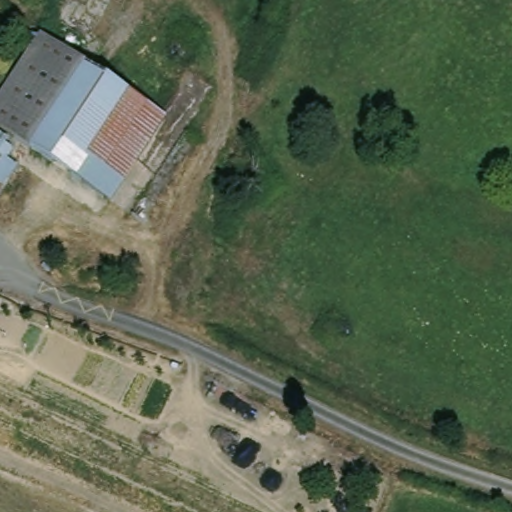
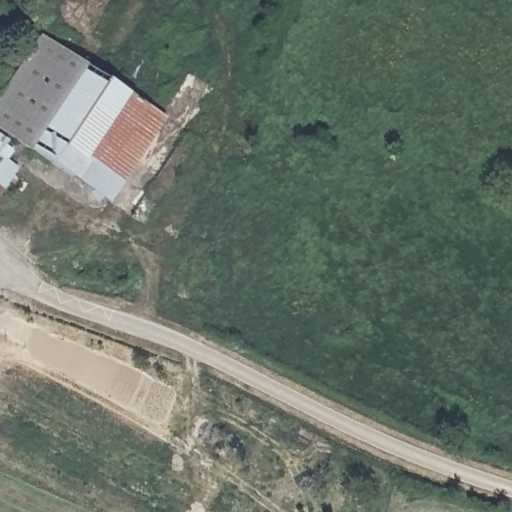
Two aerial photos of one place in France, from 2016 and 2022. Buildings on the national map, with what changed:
unchanged [(0,116),(0,102),(45,34),(165,115),(112,192),(0,116)]
unchanged [(16,146),(12,151),(20,157),(8,175),(0,170),(0,138),(0,137),(16,146)]
unchanged [(3,182),(0,187),(0,170),(8,175),(3,182)]

